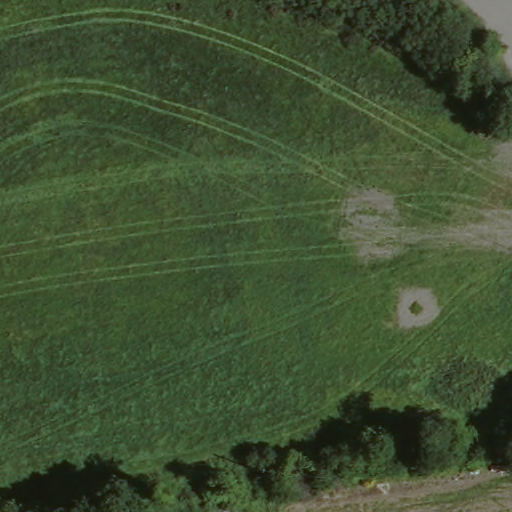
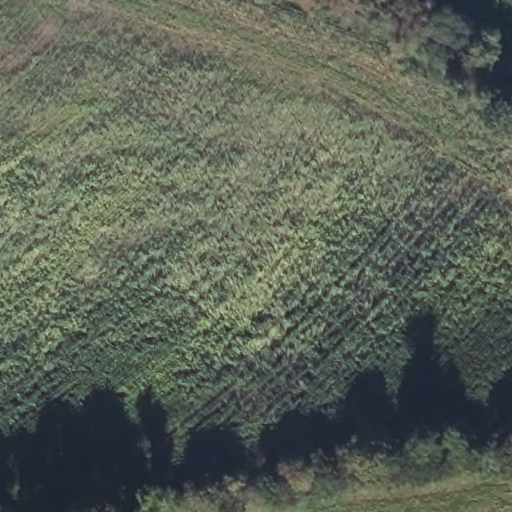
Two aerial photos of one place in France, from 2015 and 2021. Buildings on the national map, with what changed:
[]

